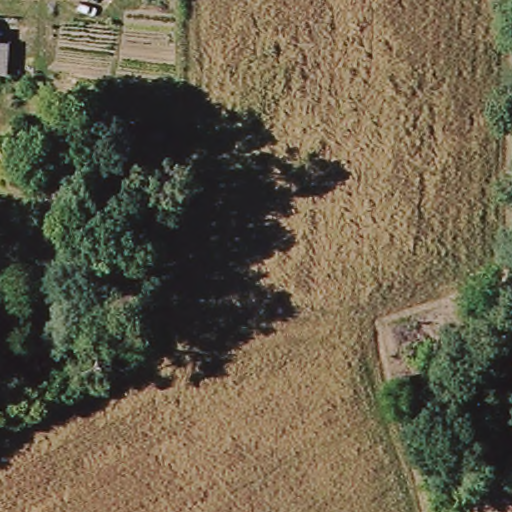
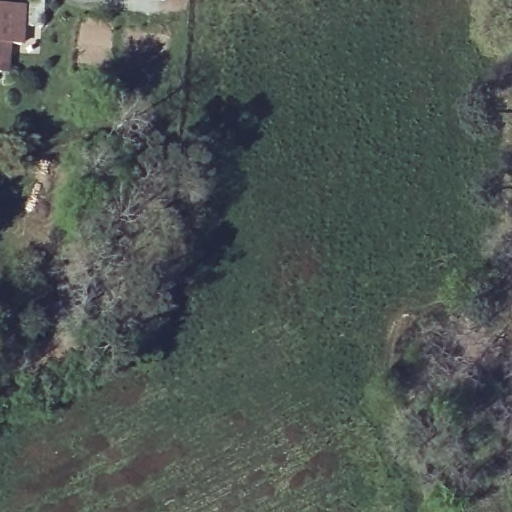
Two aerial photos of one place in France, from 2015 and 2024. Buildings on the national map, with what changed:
new [(24,4),(24,45),(10,45),(9,73),(0,73),(0,3),(24,4)]

